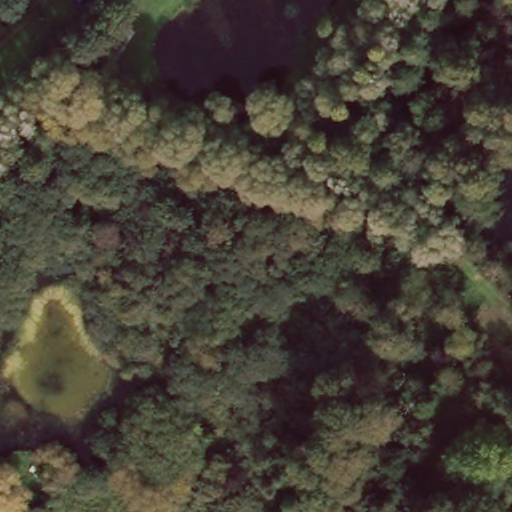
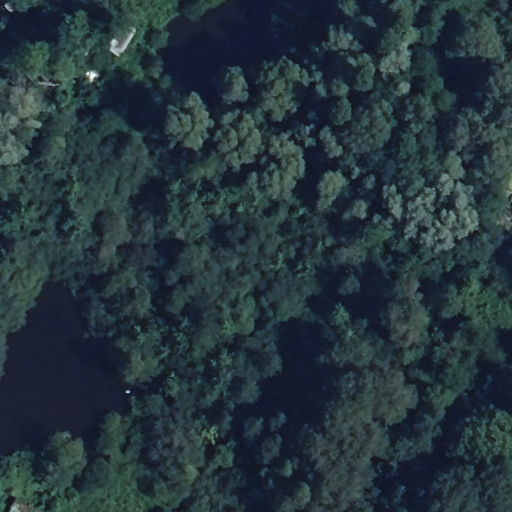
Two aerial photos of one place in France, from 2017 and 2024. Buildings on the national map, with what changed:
[]

